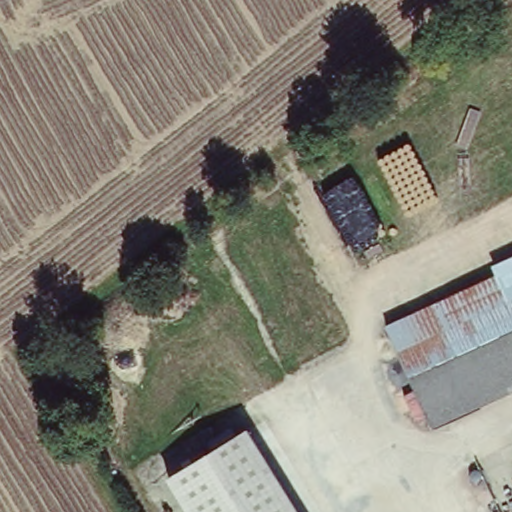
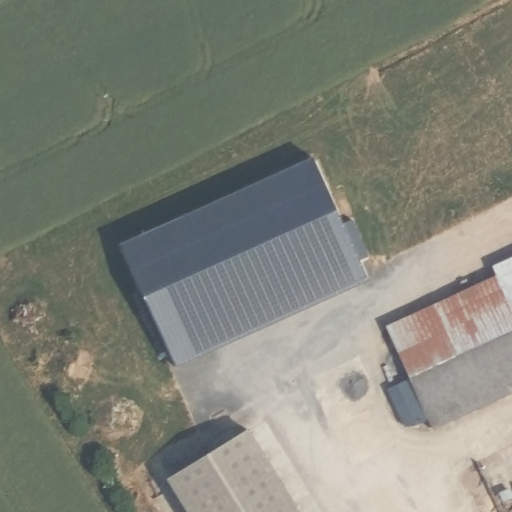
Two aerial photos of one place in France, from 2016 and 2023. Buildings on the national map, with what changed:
new [(121,252),(312,158),(365,276),(176,372),(121,252)]
unchanged [(490,265),(512,254),(512,304),(404,353),(411,369),(404,373),(381,323),(493,273),(490,265)]
unchanged [(432,417),(403,432),(383,393),(406,380),(404,373),(411,369),(404,353),(512,304),(512,393),(438,428),(432,417)]
unchanged [(248,431),(299,512),(187,512),(167,480),(248,431)]

